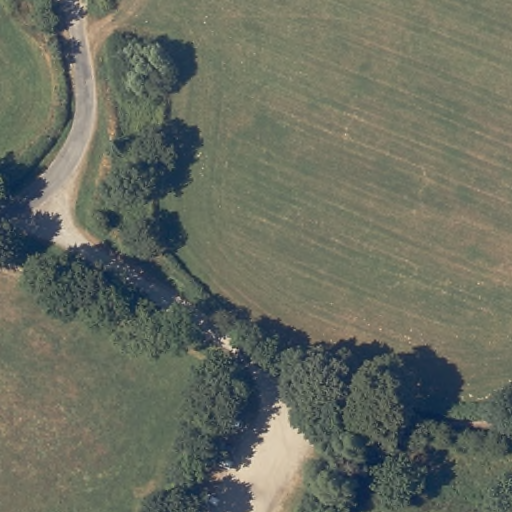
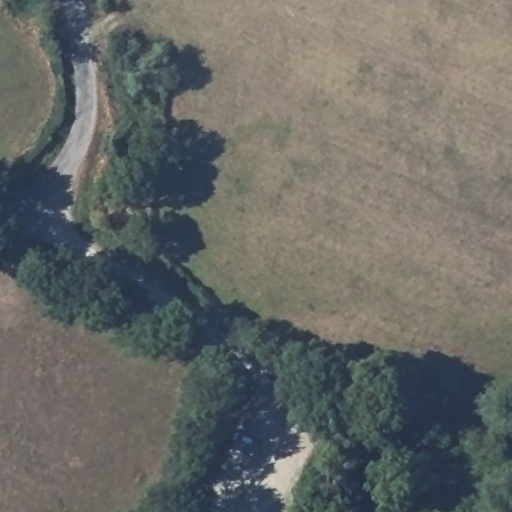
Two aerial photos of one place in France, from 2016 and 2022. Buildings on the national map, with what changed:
unchanged [(241,389),(254,396),(248,407),(235,400),(241,389)]

